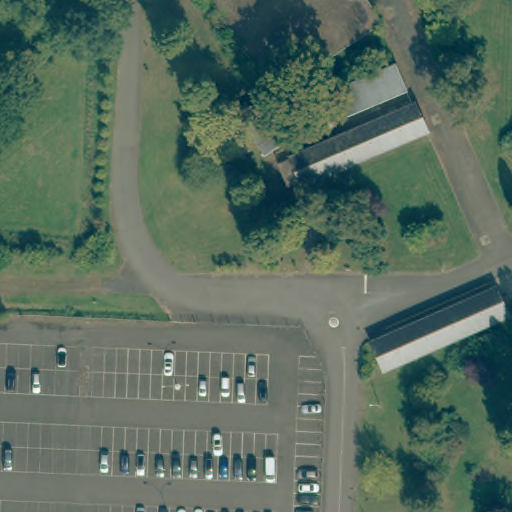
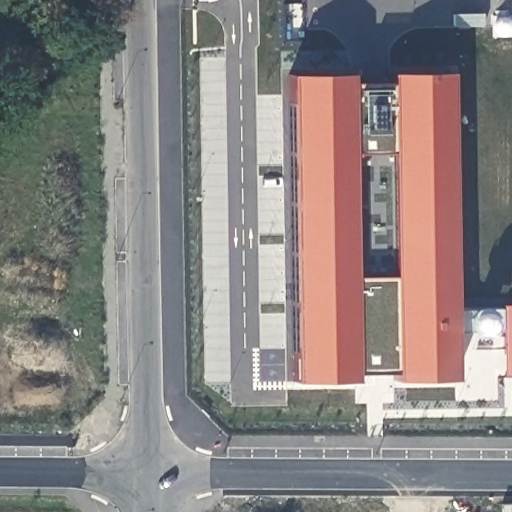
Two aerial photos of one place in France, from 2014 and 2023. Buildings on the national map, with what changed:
demolished [(379,23),(277,94),(264,75),(215,0),(365,0),(379,23)]
new [(452,297),(512,299),(512,378),(295,380),(286,75),(447,70),(452,297)]
demolished [(273,95),(300,137),(268,158),(240,117),(273,95)]
demolished [(303,174),(290,180),(281,159),(294,155),(293,152),(418,100),(430,127),(306,180),(303,174)]
demolished [(512,174),(512,203),(505,206),(476,140),(494,132),(512,174)]
demolished [(368,338),(493,284),(505,311),(381,365),(368,338)]
demolished [(512,289),(512,311),(504,293),(512,289)]

